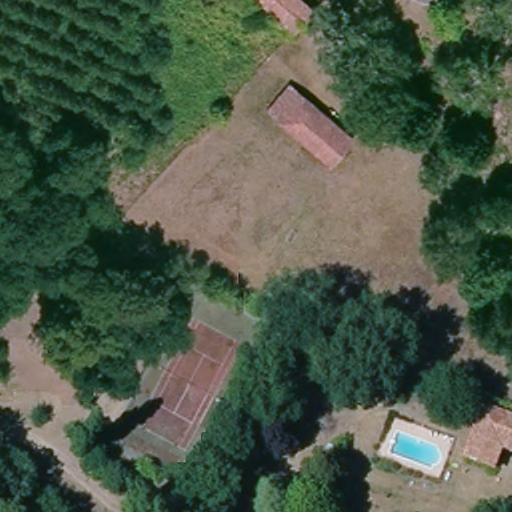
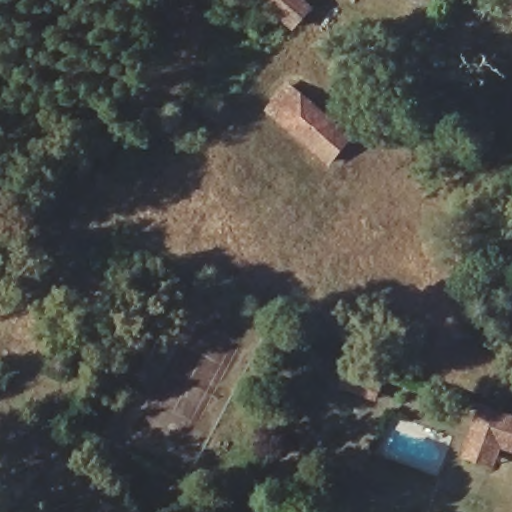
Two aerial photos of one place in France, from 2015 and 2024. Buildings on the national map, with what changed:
unchanged [(314,0),(324,9),(306,28),(276,0),(314,0)]
unchanged [(337,164),(289,124),(275,112),(297,88),(310,99),(358,140),(337,164)]
unchanged [(507,451),(499,471),(473,460),(481,441),(490,414),(512,422),(512,452),(507,451)]

